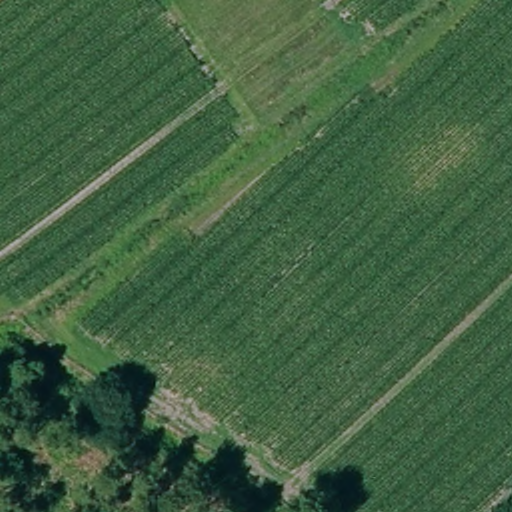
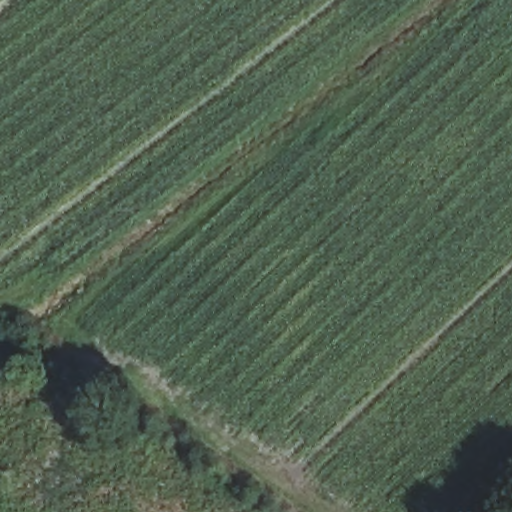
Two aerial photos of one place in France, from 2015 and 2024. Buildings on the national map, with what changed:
[]

